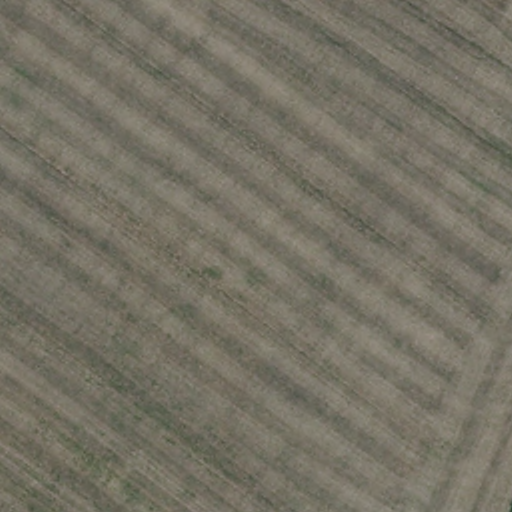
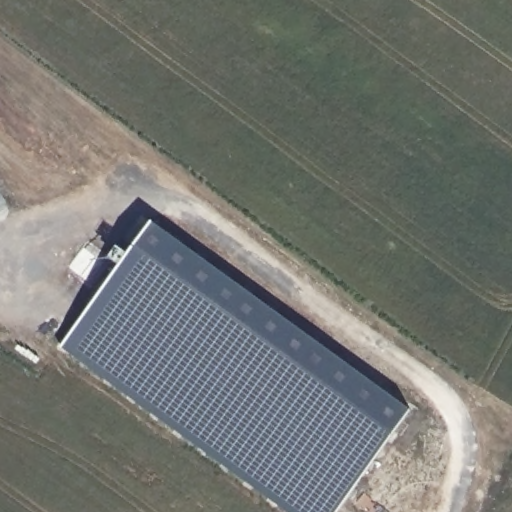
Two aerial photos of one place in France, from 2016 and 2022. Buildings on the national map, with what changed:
new [(335,512),(289,512),(61,346),(153,221),(411,409),(335,512)]

